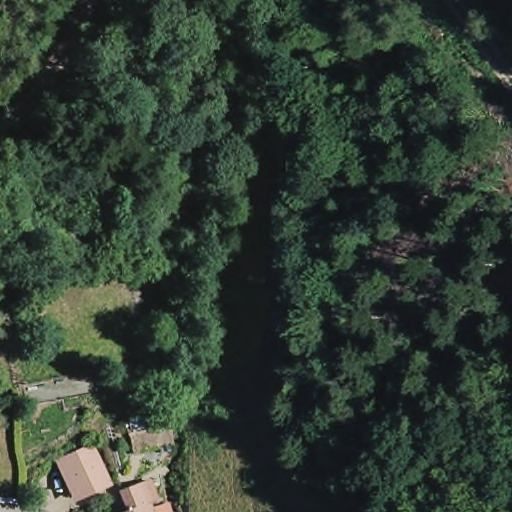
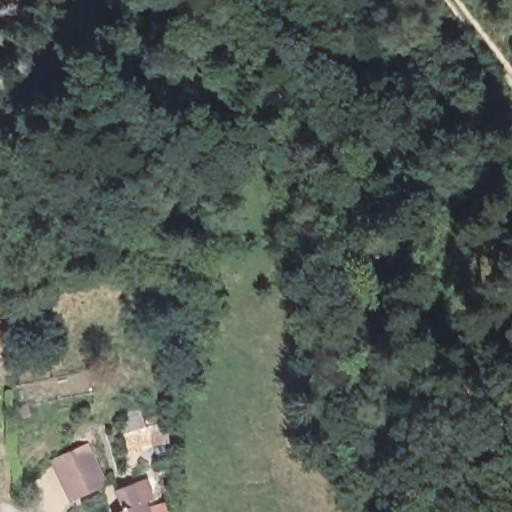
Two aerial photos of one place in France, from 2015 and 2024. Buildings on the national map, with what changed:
unchanged [(133,457),(124,421),(165,408),(172,445),(133,457)]
unchanged [(72,502),(57,466),(84,455),(95,479),(100,490),(93,493),(72,502)]
unchanged [(109,498),(129,490),(137,512),(114,512),(109,498)]

